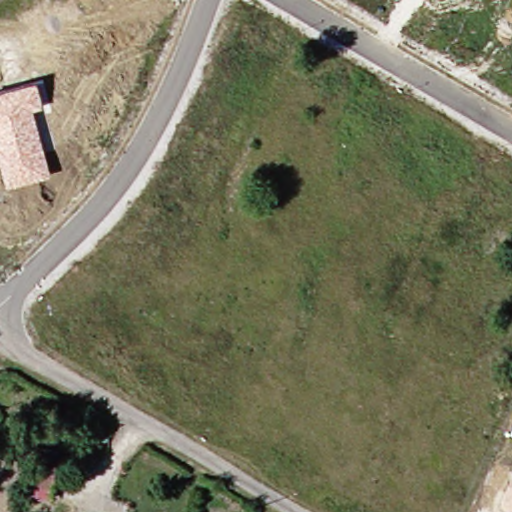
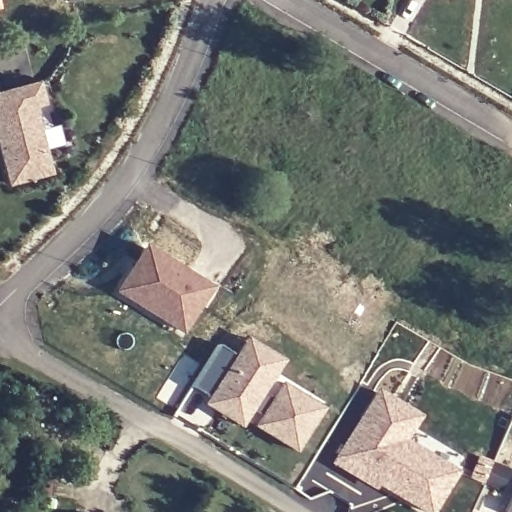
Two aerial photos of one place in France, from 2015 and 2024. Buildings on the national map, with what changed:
new [(2,8),(0,8),(0,0),(2,8)]
unchanged [(36,82),(43,107),(32,110),(50,176),(5,187),(0,170),(0,91),(36,82)]
new [(174,330),(150,316),(131,305),(112,293),(136,251),(199,288),(174,330)]
new [(196,407),(200,400),(182,389),(208,347),(226,359),(236,341),(271,363),(261,380),(252,394),(263,401),(271,387),(312,410),(286,453),(246,428),(251,419),(241,412),(235,422),(231,428),(196,407)]
new [(366,487),(327,463),(369,394),(408,417),(393,441),(421,459),(445,474),(438,486),(422,512),(418,512),(397,500),(385,493),(369,483),(366,487)]
unchanged [(57,470),(55,497),(30,495),(32,468),(57,470)]
unchanged [(512,512),(502,512),(512,487),(512,512)]

